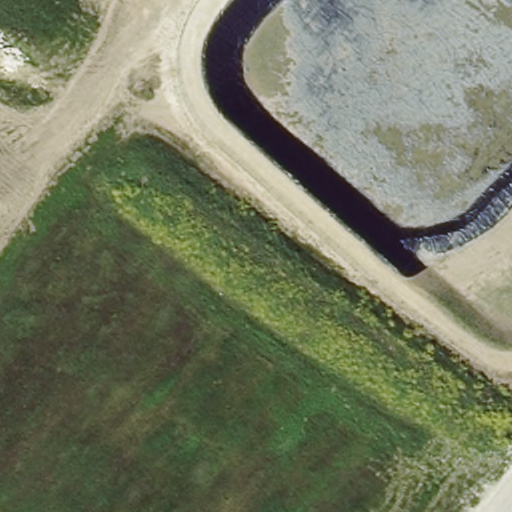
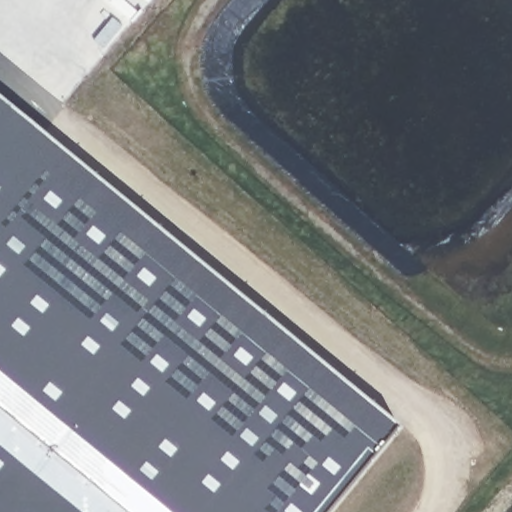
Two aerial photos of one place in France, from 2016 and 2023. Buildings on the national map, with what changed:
new [(333,512),(0,512),(0,93),(404,426),(333,512)]

